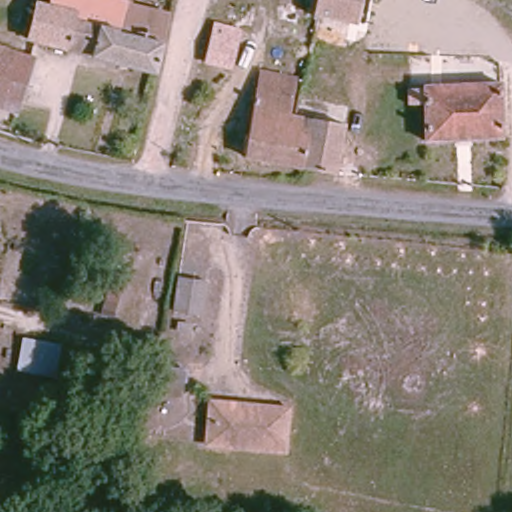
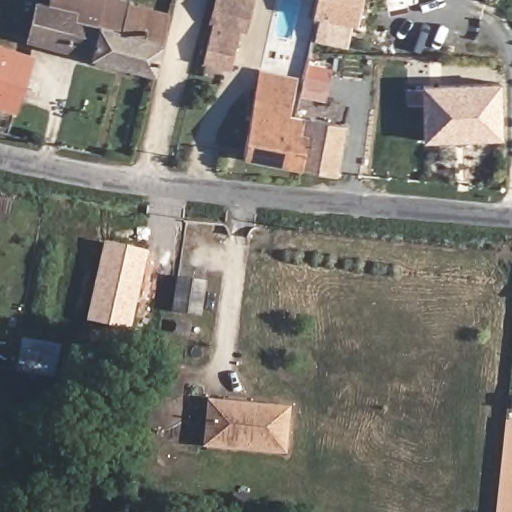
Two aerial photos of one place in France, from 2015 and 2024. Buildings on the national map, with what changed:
unchanged [(37,0),(54,1),(54,0),(124,0),(134,2),(132,15),(169,24),(157,73),(32,42),(37,0)]
new [(214,21),(213,26),(208,25),(213,0),(253,0),(247,32),(238,32),(239,27),(214,21)]
unchanged [(362,23),(357,62),(310,52),(319,0),(362,0),(359,22),(362,23)]
unchanged [(228,71),(202,65),(214,21),(239,27),(228,71)]
unchanged [(20,111),(0,105),(0,47),(36,59),(20,111)]
unchanged [(247,160),(262,70),(301,77),(292,114),(346,126),(339,174),(247,160)]
unchanged [(421,143),(422,87),(500,84),(502,140),(421,143)]
new [(104,241),(148,250),(130,329),(86,321),(104,241)]
unchanged [(170,310),(177,278),(206,284),(201,315),(170,310)]
unchanged [(24,337),(66,346),(62,377),(18,371),(24,337)]
unchanged [(280,454),(209,438),(219,395),(290,412),(280,454)]
new [(505,420),(512,420),(512,512),(495,512),(505,420)]

